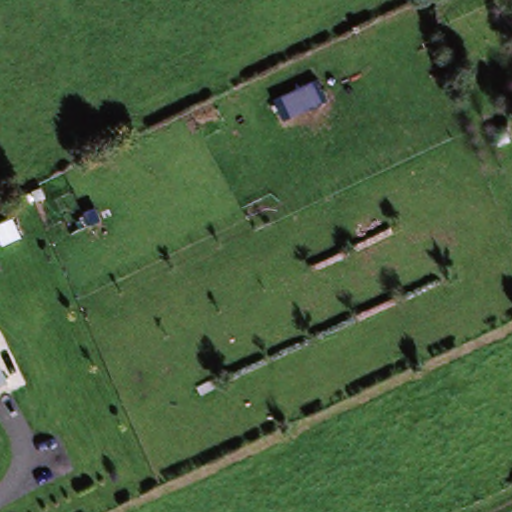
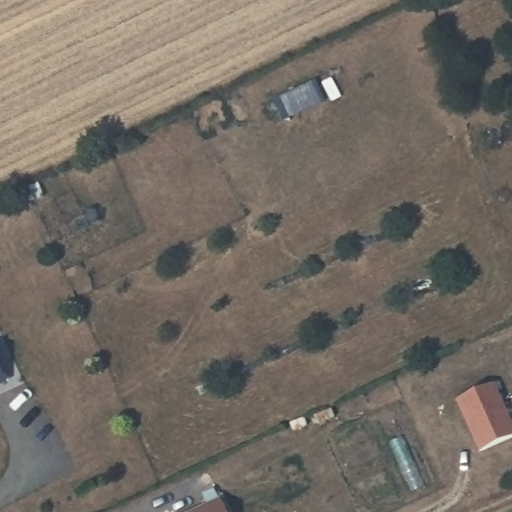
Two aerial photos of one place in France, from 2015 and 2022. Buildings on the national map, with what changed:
unchanged [(273,102),(318,80),(328,103),(282,125),(273,102)]
unchanged [(0,349),(16,383),(0,390),(0,349)]
new [(495,383),(512,422),(512,438),(480,453),(456,402),(495,383)]
new [(188,512),(220,497),(227,512),(188,512)]

